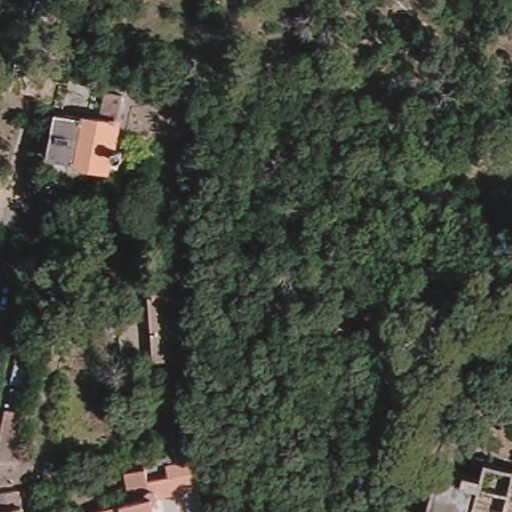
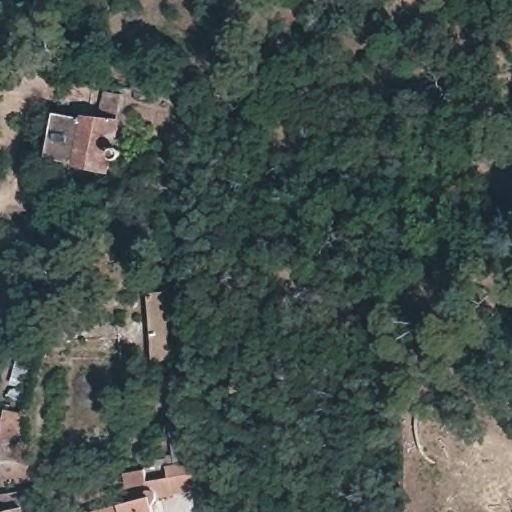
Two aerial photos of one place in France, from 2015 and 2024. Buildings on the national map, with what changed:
unchanged [(108,92),(125,95),(118,147),(121,149),(123,151),(123,154),(121,157),(121,167),(111,166),(110,172),(98,170),(98,165),(50,157),(58,112),(104,120),(108,92)]
unchanged [(189,199),(186,198),(176,196),(178,185),(190,188),(189,199)]
unchanged [(183,365),(180,366),(151,367),(151,366),(146,297),(178,295),(180,336),(183,365)]
unchanged [(37,486),(0,493),(0,453),(9,415),(26,418),(37,486)]
unchanged [(151,480),(173,476),(171,463),(178,462),(173,422),(191,420),(195,460),(200,459),(203,490),(161,497),(159,504),(160,512),(92,512),(131,502),(126,472),(148,468),(151,480)]
demolished [(480,458),(512,467),(512,512),(429,512),(440,466),(441,463),(458,467),(457,470),(477,473),(480,458)]
unchanged [(0,512),(0,501),(23,497),(25,512),(0,512)]

